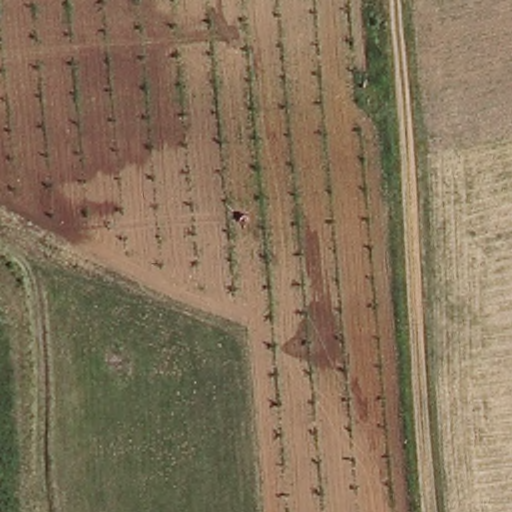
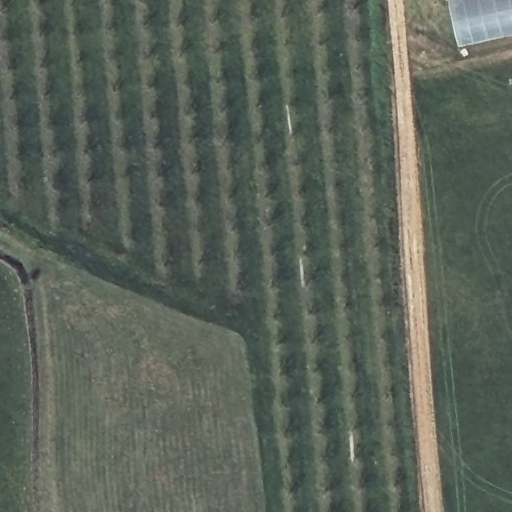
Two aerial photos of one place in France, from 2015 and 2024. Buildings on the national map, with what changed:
new [(512,0),(512,35),(461,46),(450,0),(512,0)]

